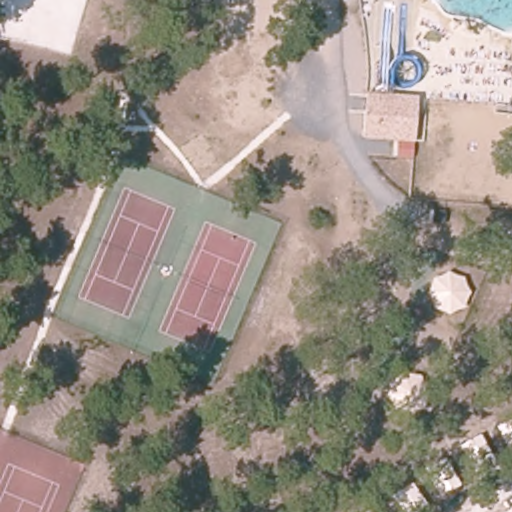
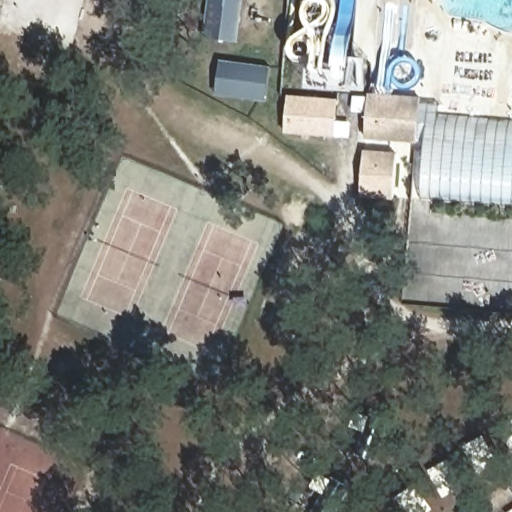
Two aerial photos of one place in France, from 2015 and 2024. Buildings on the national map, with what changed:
new [(204,36),(208,0),(246,0),(243,40),(204,36)]
new [(270,66),(266,101),(217,98),(220,61),(270,66)]
new [(367,141),(370,94),(420,97),(420,104),(417,142),(417,144),(367,141)]
new [(285,133),(288,96),(337,99),(335,136),(285,133)]
new [(420,199),(423,142),(417,142),(420,104),(439,105),(438,115),(512,122),(512,207),(420,199)]
new [(361,199),(363,151),(396,153),(393,201),(361,199)]

